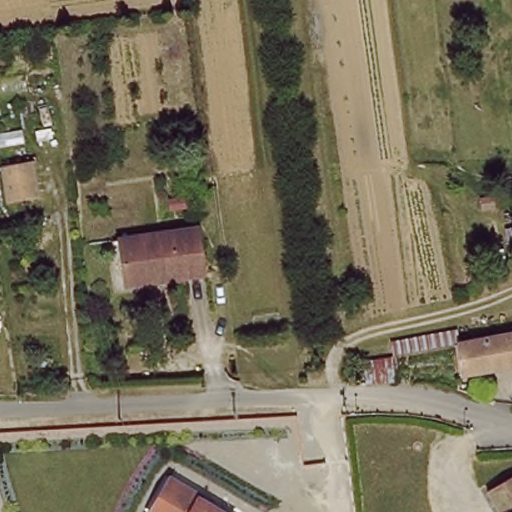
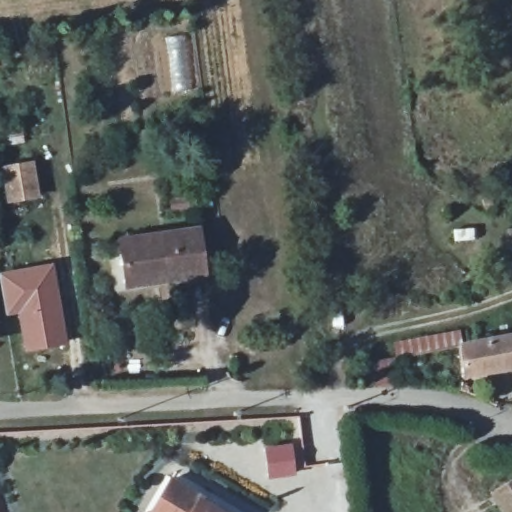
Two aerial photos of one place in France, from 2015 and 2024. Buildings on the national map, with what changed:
unchanged [(34,165),(39,199),(9,204),(4,170),(34,165)]
unchanged [(195,235),(203,282),(165,288),(163,277),(123,282),(118,245),(195,235)]
new [(68,344),(24,352),(17,315),(5,317),(0,288),(0,271),(54,261),(68,344)]
unchanged [(457,347),(402,359),(402,384),(370,388),(367,362),(396,359),(396,343),(464,330),(465,342),(512,333),(512,375),(463,381),(457,347)]
unchanged [(170,481),(204,499),(202,503),(218,512),(152,512),(170,481)]
unchanged [(492,493),(512,481),(512,512),(501,512),(492,493)]

